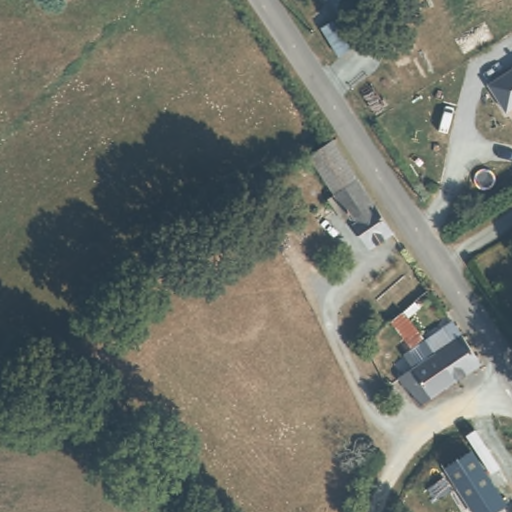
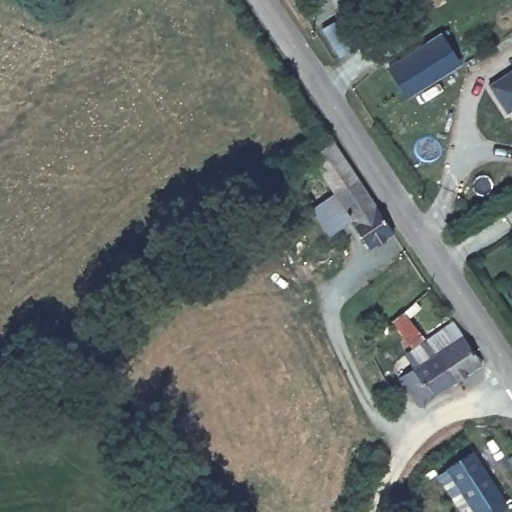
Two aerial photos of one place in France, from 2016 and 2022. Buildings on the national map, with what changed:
unchanged [(355,47),(340,57),(321,26),(335,17),(355,47)]
new [(463,63),(408,98),(387,66),(442,31),(463,63)]
unchanged [(512,106),(506,110),(488,82),(512,66),(512,106)]
unchanged [(363,180),(339,196),(312,157),(336,141),(363,180)]
unchanged [(363,180),(397,230),(373,248),(339,196),(363,180)]
unchanged [(423,340),(410,349),(390,322),(402,312),(423,340)]
unchanged [(439,352),(429,335),(456,318),(483,359),(458,378),(439,352)]
unchanged [(414,388),(413,389),(403,376),(439,352),(458,378),(425,402),(414,388)]
unchanged [(496,512),(472,512),(444,469),(472,451),(508,504),(496,512)]

